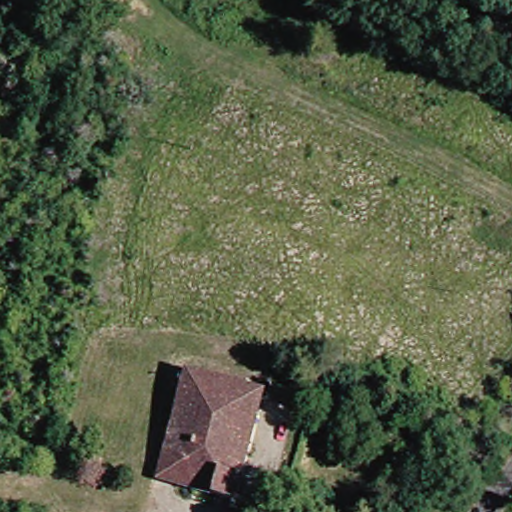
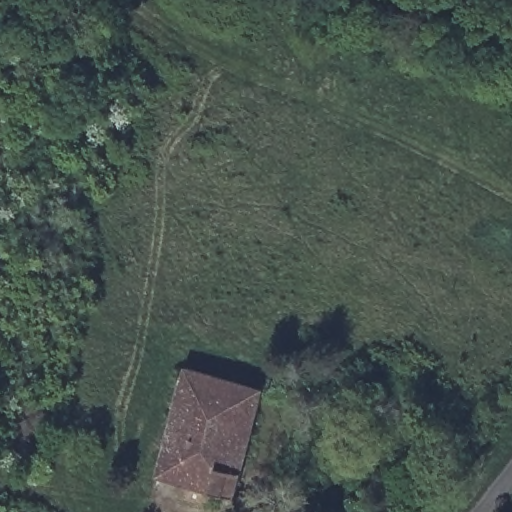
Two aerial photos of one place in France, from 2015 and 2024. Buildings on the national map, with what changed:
unchanged [(160,440),(178,364),(258,385),(247,423),(233,474),(227,497),(176,483),(151,476),(160,440)]

